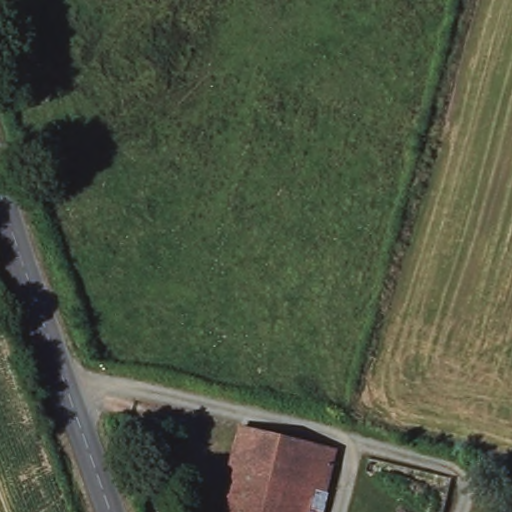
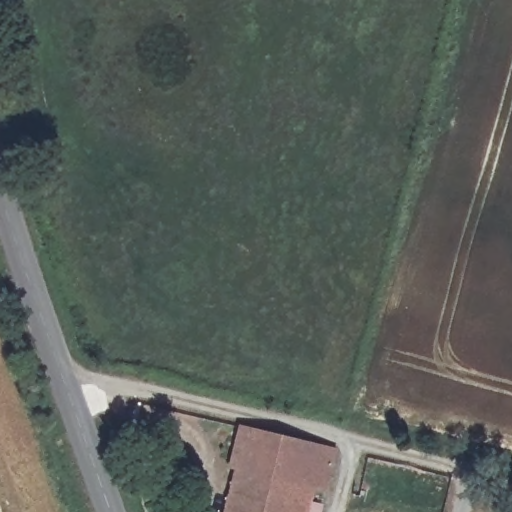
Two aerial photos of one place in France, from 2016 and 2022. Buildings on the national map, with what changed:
unchanged [(308,512),(223,512),(235,467),(230,465),(239,427),(336,450),(326,489),(315,487),(312,497),(308,512)]

